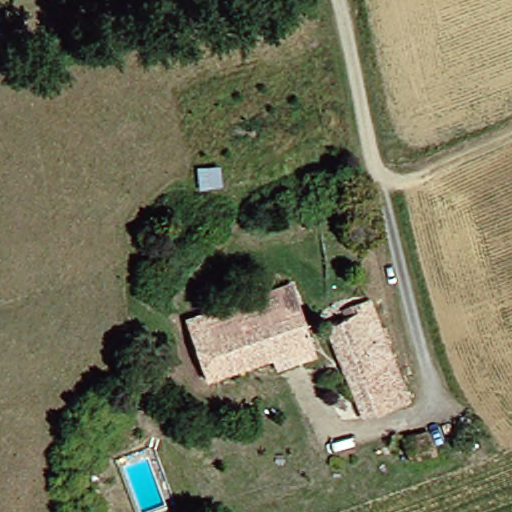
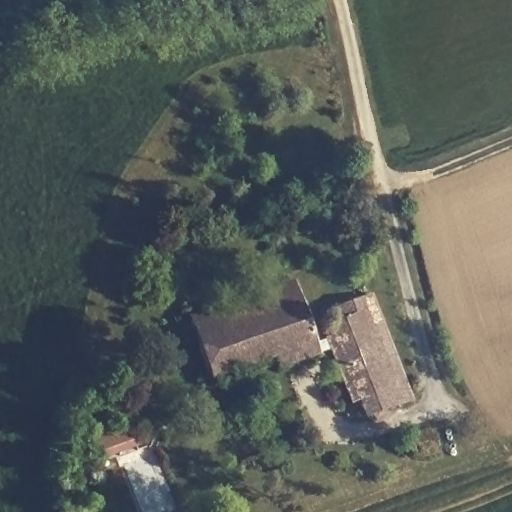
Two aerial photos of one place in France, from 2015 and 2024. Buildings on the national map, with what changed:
unchanged [(286,373),(281,358),(211,383),(190,323),(295,285),(316,345),(322,359),(286,373)]
unchanged [(351,320),(349,310),(360,307),(375,301),(397,366),(352,381),(335,326),(351,320)]
unchanged [(397,366),(410,402),(365,418),(352,381),(397,366)]
unchanged [(417,467),(415,446),(438,443),(440,465),(417,467)]

